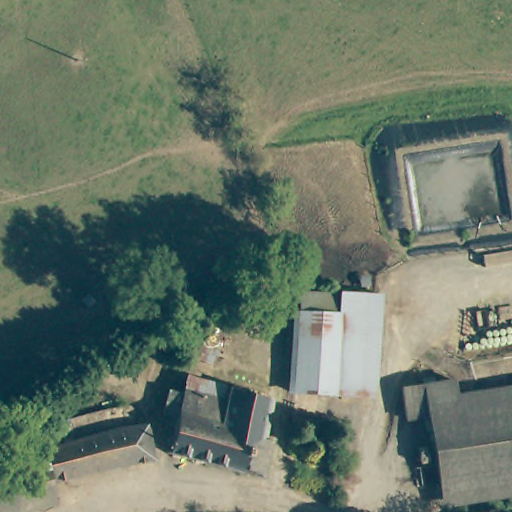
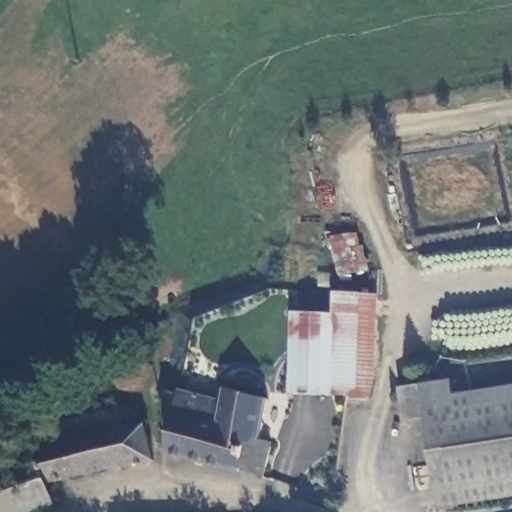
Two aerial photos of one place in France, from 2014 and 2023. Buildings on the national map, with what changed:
unchanged [(302,289),(316,290),(375,293),(369,396),(322,394),(307,393),(294,392),(300,289),(302,289)]
unchanged [(279,403),(268,439),(275,442),(265,479),(168,454),(177,421),(174,419),(162,412),(171,388),(183,391),(188,374),(192,375),(214,383),(237,391),(237,389),(279,403)]
unchanged [(406,419),(402,387),(453,379),(455,394),(457,411),(428,416),(406,419)]
unchanged [(455,394),(512,385),(512,495),(441,505),(428,416),(457,411),(455,394)]
unchanged [(21,470),(51,449),(159,423),(166,457),(59,481),(64,502),(29,512),(0,512),(0,476),(21,470)]

